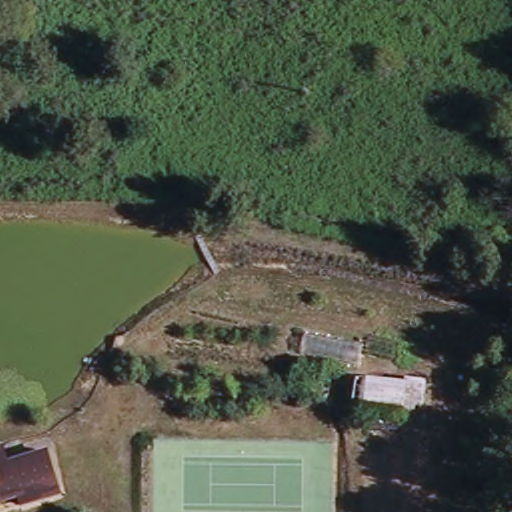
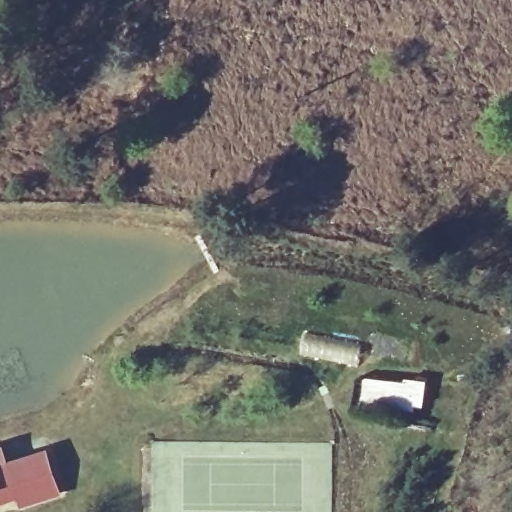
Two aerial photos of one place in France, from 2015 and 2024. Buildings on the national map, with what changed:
unchanged [(425,381),(422,412),(363,406),(366,375),(425,381)]
unchanged [(51,449),(64,497),(23,512),(20,501),(0,507),(0,447),(5,446),(10,460),(51,449)]

